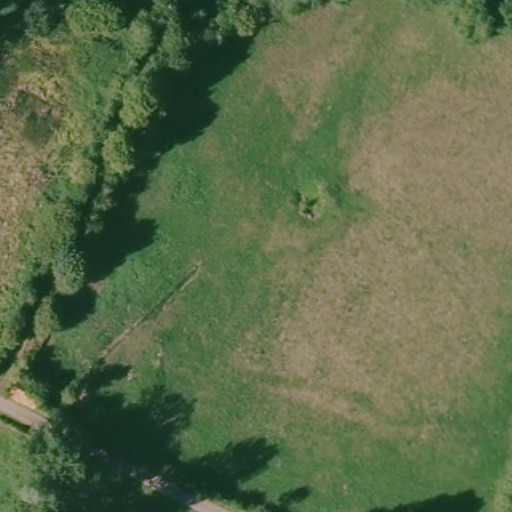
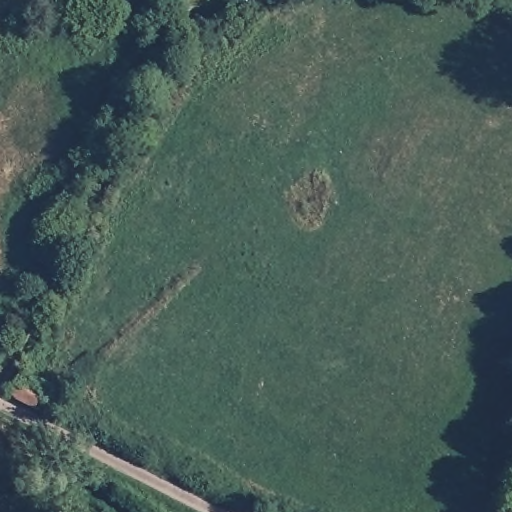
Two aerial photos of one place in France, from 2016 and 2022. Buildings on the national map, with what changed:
unchanged [(50,393),(44,412),(15,396),(23,379),(50,393)]

